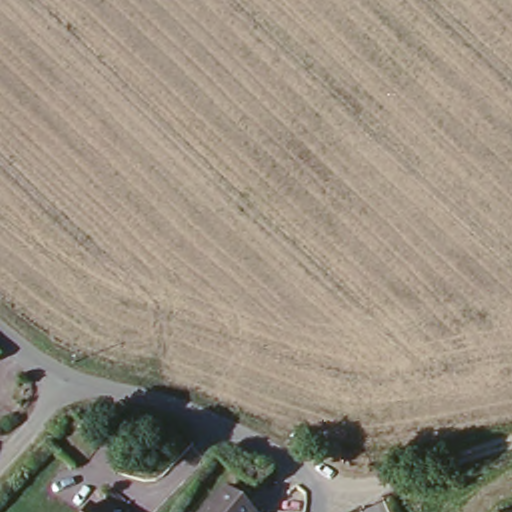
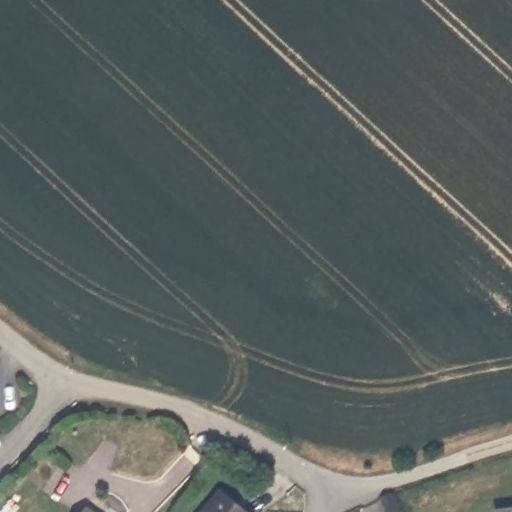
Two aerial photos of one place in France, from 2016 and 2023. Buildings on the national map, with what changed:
unchanged [(245,512),(207,512),(225,493),(245,512)]
unchanged [(97,512),(85,512),(90,506),(97,512)]
unchanged [(497,507),(512,506),(512,512),(497,512),(497,507)]

